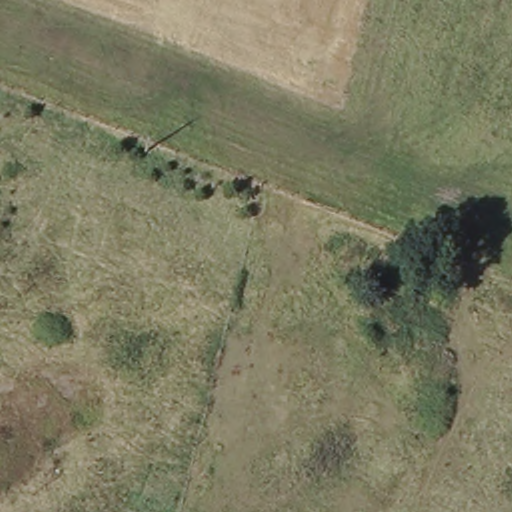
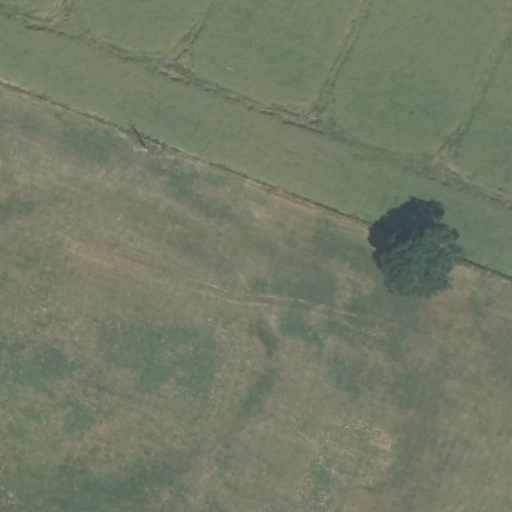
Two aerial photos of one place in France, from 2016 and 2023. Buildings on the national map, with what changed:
[]

